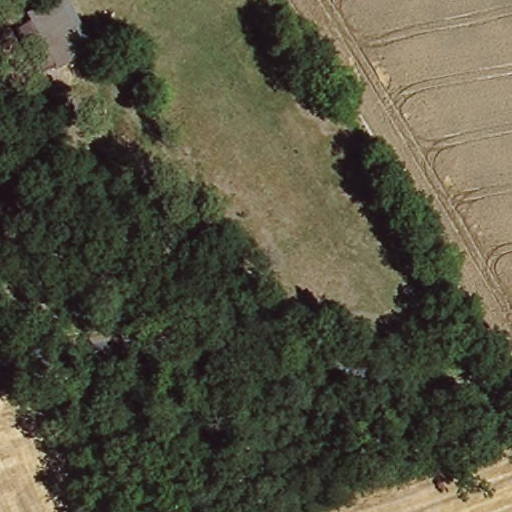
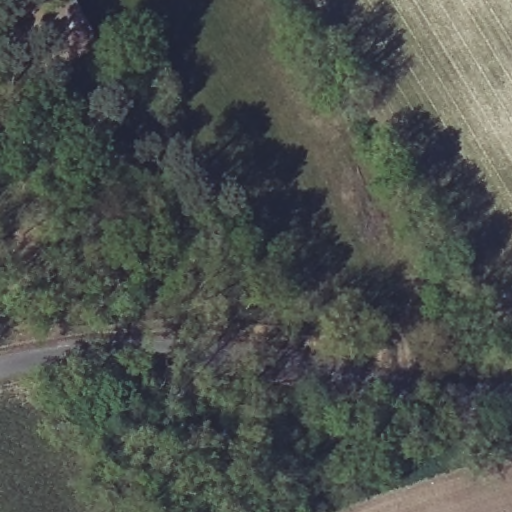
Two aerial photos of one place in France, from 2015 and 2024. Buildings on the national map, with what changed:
unchanged [(73,69),(60,51),(29,66),(9,29),(60,0),(63,0),(96,55),(73,69)]

